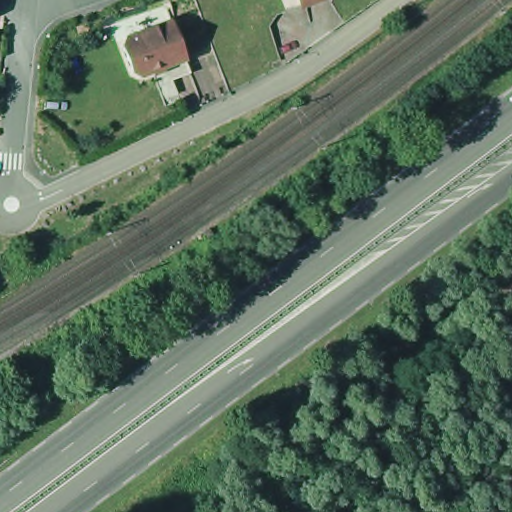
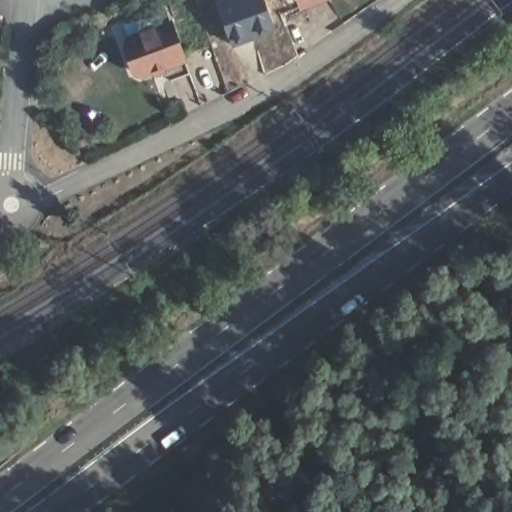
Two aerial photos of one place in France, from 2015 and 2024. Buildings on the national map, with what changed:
new [(231,46),(214,0),(263,0),(274,30),(231,46)]
unchanged [(181,60),(139,76),(130,72),(121,48),(124,41),(167,26),(181,60)]

